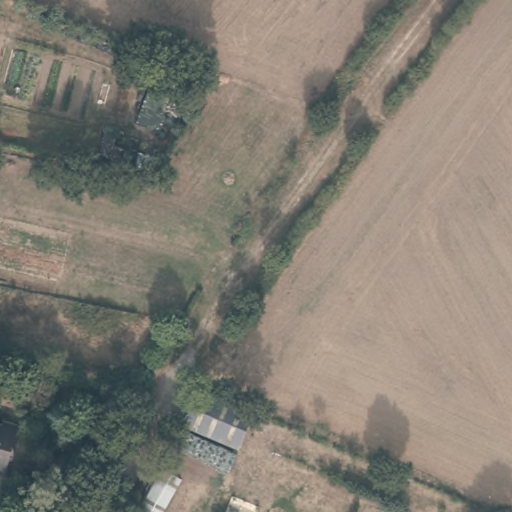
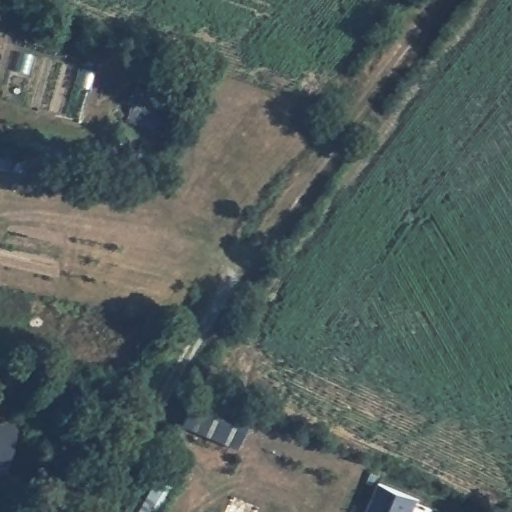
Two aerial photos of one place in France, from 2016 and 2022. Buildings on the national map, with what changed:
unchanged [(163,77),(169,63),(198,75),(192,89),(163,77)]
unchanged [(86,380),(105,386),(101,400),(82,395),(86,380)]
unchanged [(197,392),(253,416),(237,453),(181,430),(197,392)]
unchanged [(0,422),(1,420),(16,425),(3,475),(0,475),(0,422)]
unchanged [(179,485),(164,512),(140,512),(161,474),(179,485)]
new [(379,482),(419,498),(413,512),(367,512),(379,482)]

